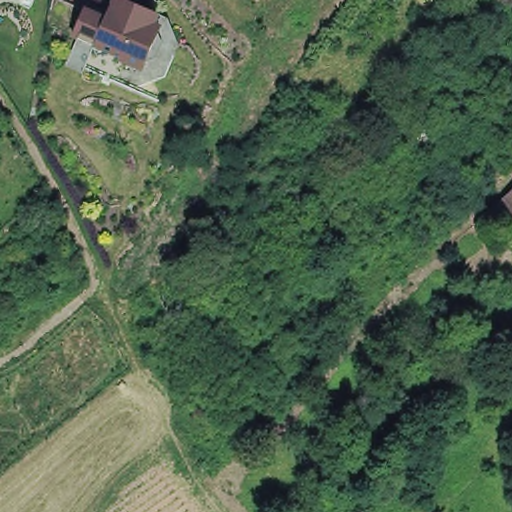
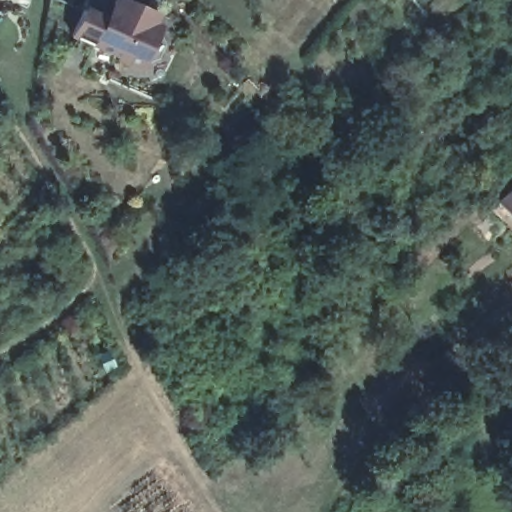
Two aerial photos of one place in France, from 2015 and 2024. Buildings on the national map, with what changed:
unchanged [(82,8),(107,18),(114,0),(134,0),(166,15),(145,64),(70,37),(82,8)]
unchanged [(497,211),(490,204),(496,198),(512,183),(512,216),(503,205),(497,211)]
unchanged [(512,223),(512,228),(510,225),(512,223)]

